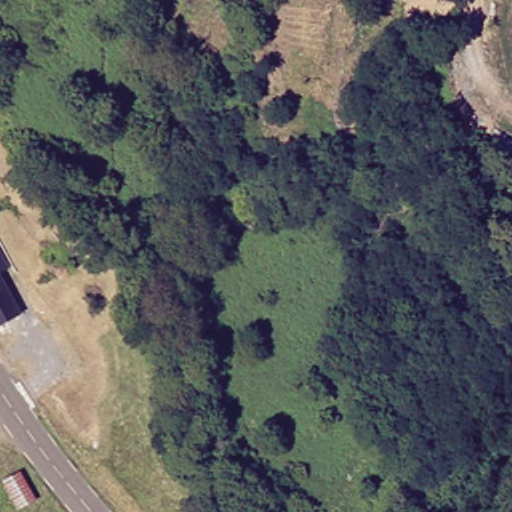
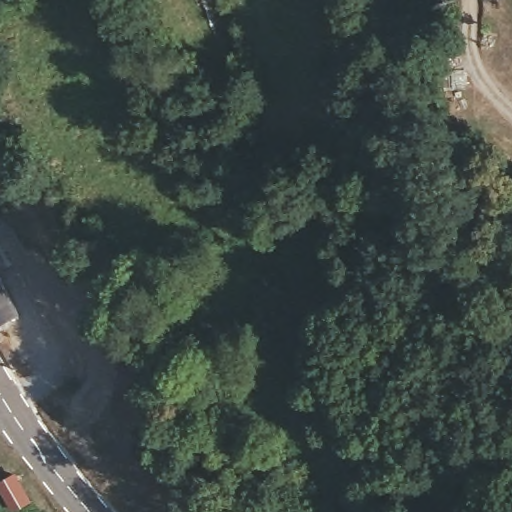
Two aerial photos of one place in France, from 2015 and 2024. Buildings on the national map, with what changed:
unchanged [(8,271),(0,277),(0,255),(8,271)]
unchanged [(19,319),(0,329),(0,282),(19,319)]
unchanged [(14,511),(0,486),(0,483),(15,476),(29,504),(14,511)]

